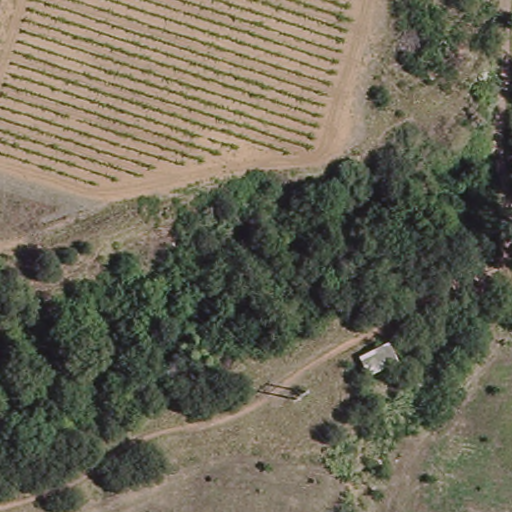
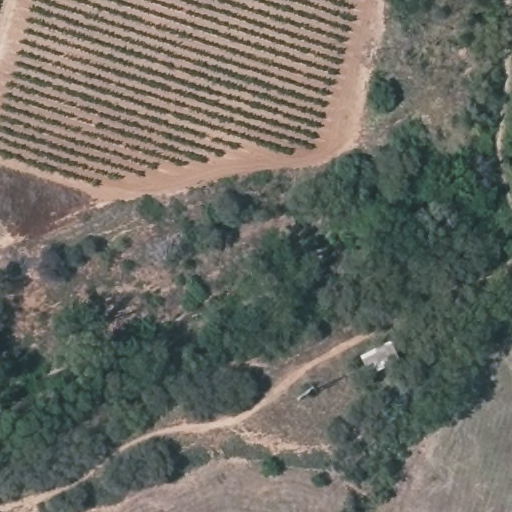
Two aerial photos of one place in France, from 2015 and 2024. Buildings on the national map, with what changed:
unchanged [(370,376),(360,359),(393,343),(402,360),(370,376)]

